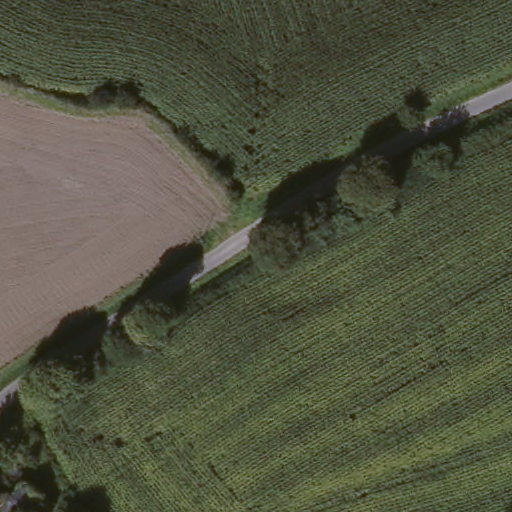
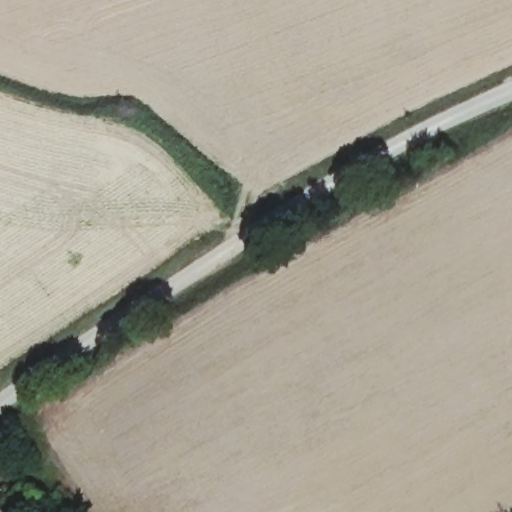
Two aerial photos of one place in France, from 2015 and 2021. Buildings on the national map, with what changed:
unchanged [(0,472),(0,453),(9,462),(0,472)]
unchanged [(33,512),(0,512),(0,472),(9,462),(46,499),(33,512)]

